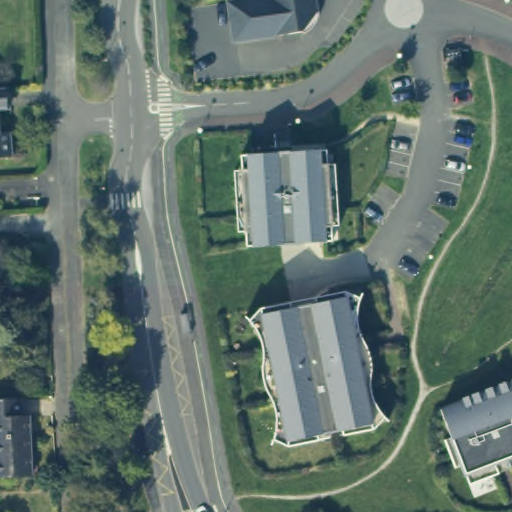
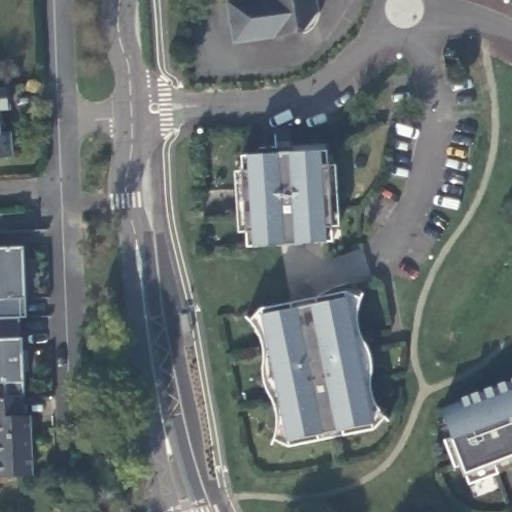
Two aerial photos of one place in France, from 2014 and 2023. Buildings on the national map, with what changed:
unchanged [(317,5),(300,28),(232,38),(227,0),(316,0),(317,5)]
unchanged [(0,110),(0,87),(3,87),(5,109),(0,110)]
unchanged [(11,157),(0,158),(0,134),(8,133),(11,157)]
unchanged [(234,163),(241,163),(240,148),(287,145),(314,143),(325,140),(326,159),(335,158),(339,219),(330,219),(331,235),(246,240),(245,225),(238,226),(234,163)]
new [(25,297),(26,317),(19,318),(20,338),(22,380),(23,416),(18,417),(17,397),(6,398),(6,383),(0,383),(0,249),(23,248),(25,297)]
unchanged [(361,298),(357,307),(359,327),(369,357),(371,368),(370,386),(372,399),(385,418),(370,429),(289,446),(273,439),(275,412),(267,391),(262,373),(263,351),(257,331),(250,318),(260,310),(260,307),(287,302),(313,297),(345,290),(361,298)]
unchanged [(467,479),(460,460),(453,463),(443,436),(450,433),(439,404),(512,377),(512,463),(497,468),(467,479)]
unchanged [(28,474),(0,475),(0,398),(17,397),(18,417),(26,416),(28,474)]

